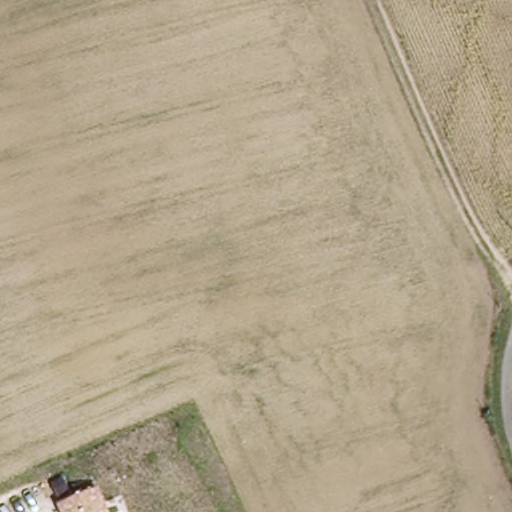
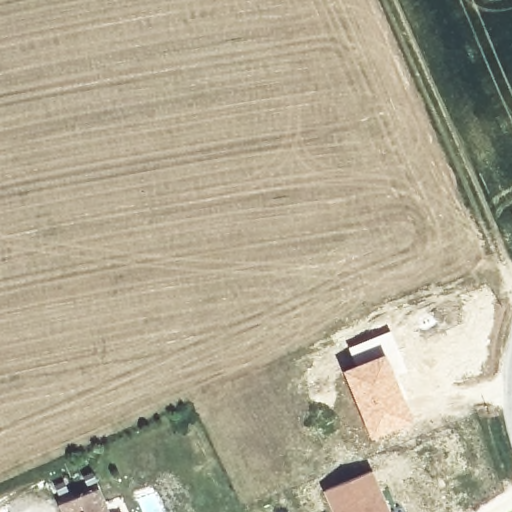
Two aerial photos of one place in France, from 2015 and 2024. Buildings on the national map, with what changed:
new [(354,364),(347,346),(390,328),(407,369),(394,374),(413,422),(371,439),(342,369),(354,364)]
new [(372,469),(391,512),(332,512),(322,490),(372,469)]
unchanged [(113,512),(64,512),(62,505),(104,487),(113,512)]

